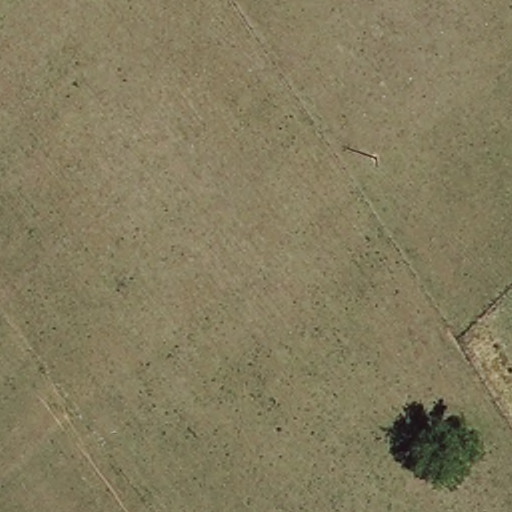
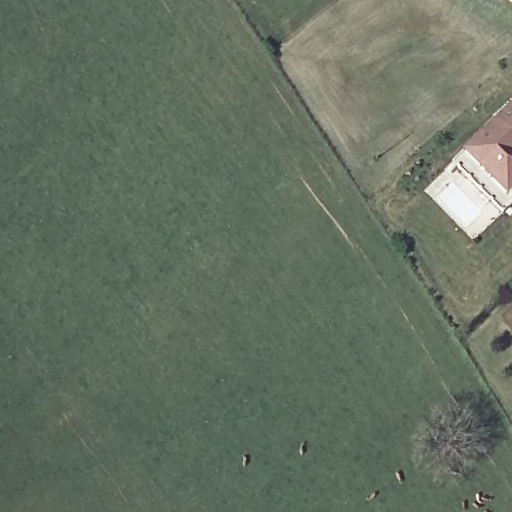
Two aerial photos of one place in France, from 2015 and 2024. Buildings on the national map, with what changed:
new [(512,105),(512,192),(511,193),(468,146),(474,141),(512,105)]

